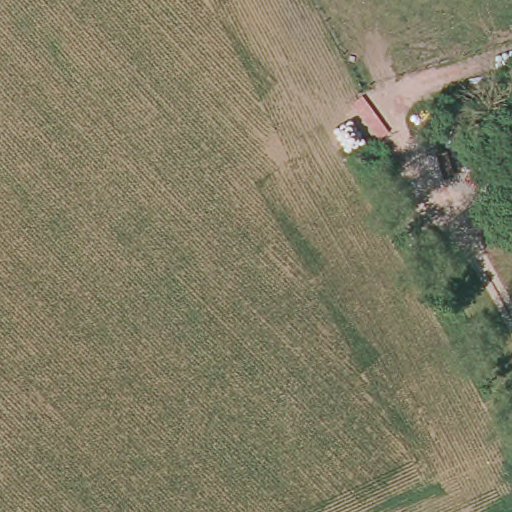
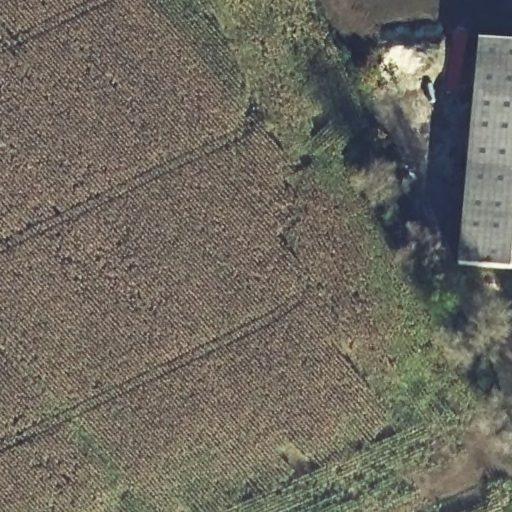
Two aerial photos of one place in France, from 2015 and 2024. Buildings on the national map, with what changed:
new [(462,263),(482,39),(512,42),(512,268),(462,263)]

